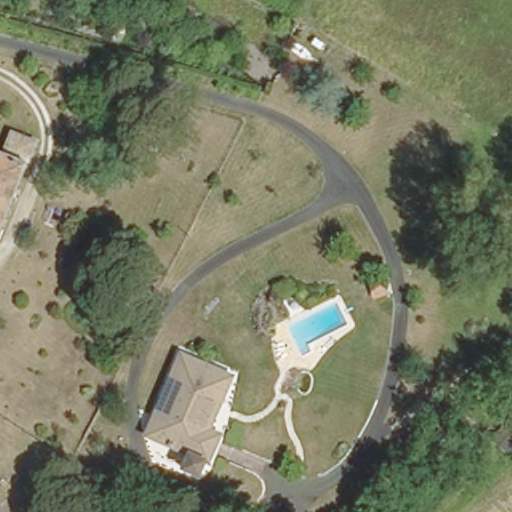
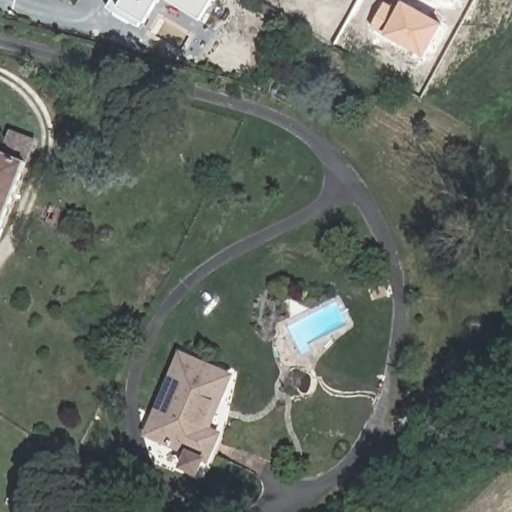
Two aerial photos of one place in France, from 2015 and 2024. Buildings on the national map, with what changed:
new [(147,24),(144,22),(140,27),(108,7),(112,0),(161,0),(147,24)]
new [(202,20),(170,0),(213,0),(202,20)]
new [(386,1),(400,10),(404,1),(445,23),(426,58),(385,35),(371,27),(386,1)]
unchanged [(0,145),(3,134),(28,144),(0,225),(0,145)]
unchanged [(178,348),(228,368),(216,395),(211,393),(199,421),(215,428),(206,452),(203,450),(195,467),(179,461),(186,444),(143,425),(178,348)]

